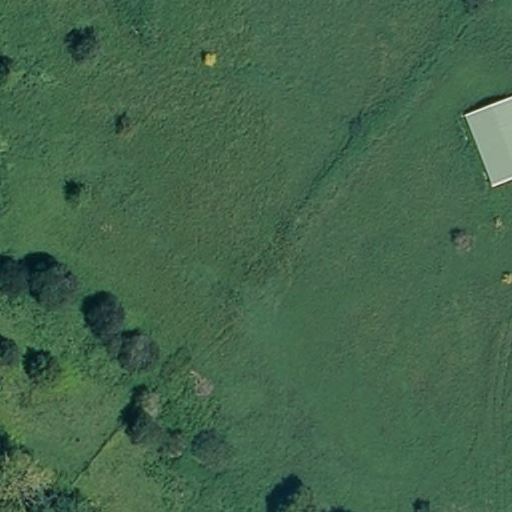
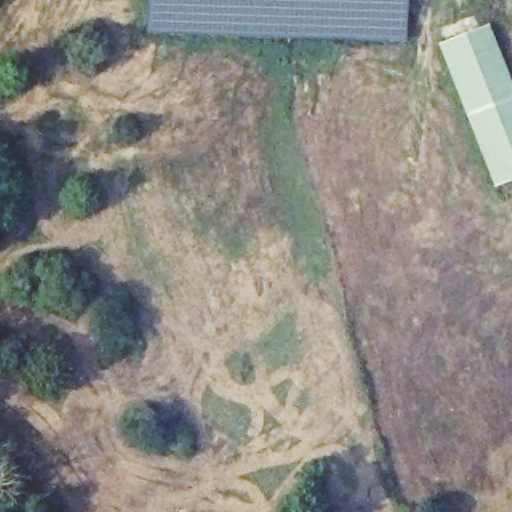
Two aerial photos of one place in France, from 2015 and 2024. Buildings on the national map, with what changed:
new [(147,0),(407,0),(406,42),(147,34),(147,0)]
unchanged [(512,112),(512,167),(482,180),(479,172),(430,49),(486,31),(512,112)]

